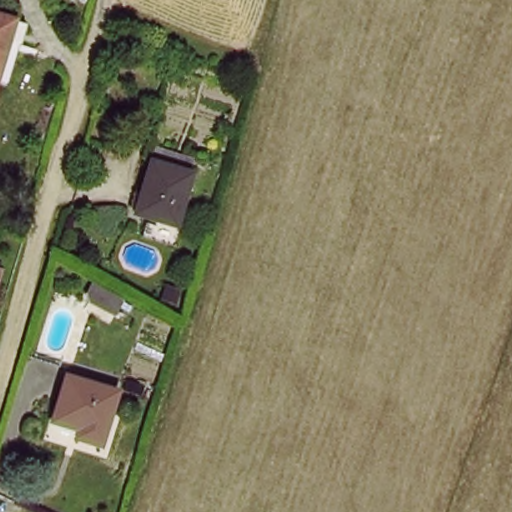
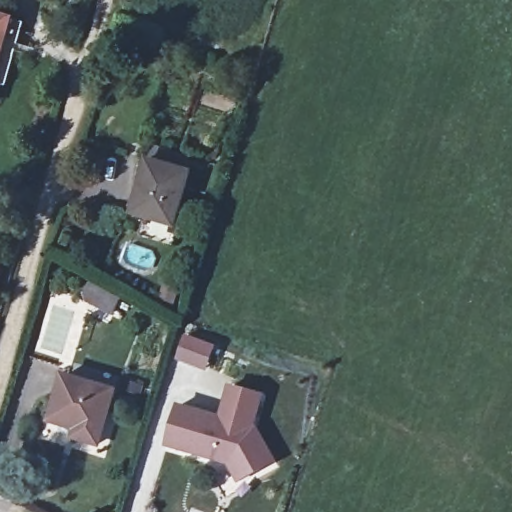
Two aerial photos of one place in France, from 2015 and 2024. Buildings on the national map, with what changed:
unchanged [(0,39),(0,16),(6,17),(0,39)]
unchanged [(23,23),(7,84),(0,82),(0,39),(6,17),(23,23)]
unchanged [(192,175),(175,228),(134,214),(151,162),(192,175)]
unchanged [(4,266),(0,279),(0,265),(4,266)]
unchanged [(119,395),(100,451),(72,442),(75,431),(52,422),(66,378),(119,395)]
new [(219,414),(226,384),(265,394),(256,426),(276,462),(236,485),(226,466),(162,447),(173,405),(219,414)]

